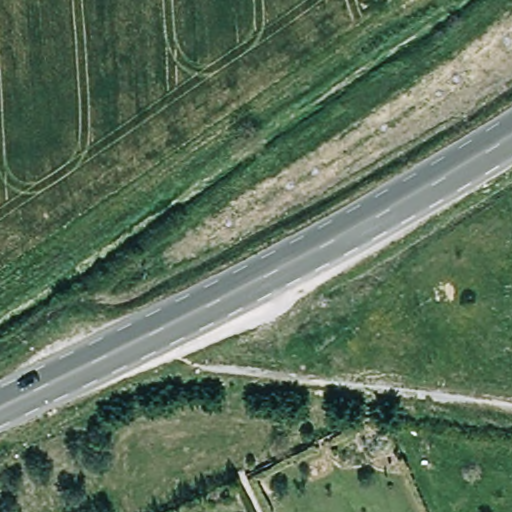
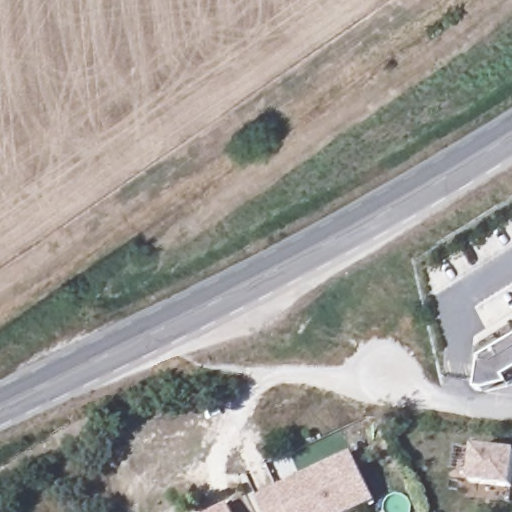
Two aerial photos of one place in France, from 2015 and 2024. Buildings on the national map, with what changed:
new [(512,340),(512,376),(506,380),(510,387),(487,393),(476,391),(480,360),(512,340)]
new [(475,448),(512,452),(512,484),(512,488),(471,483),(475,448)]
new [(352,452),(376,502),(354,512),(263,512),(256,497),(276,487),(352,452)]
new [(232,512),(210,512),(227,503),(232,512)]

